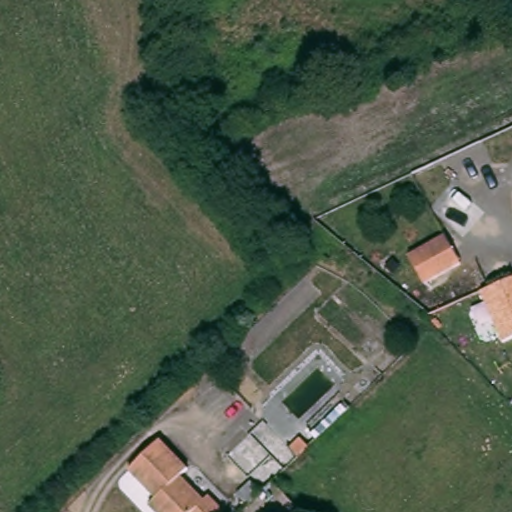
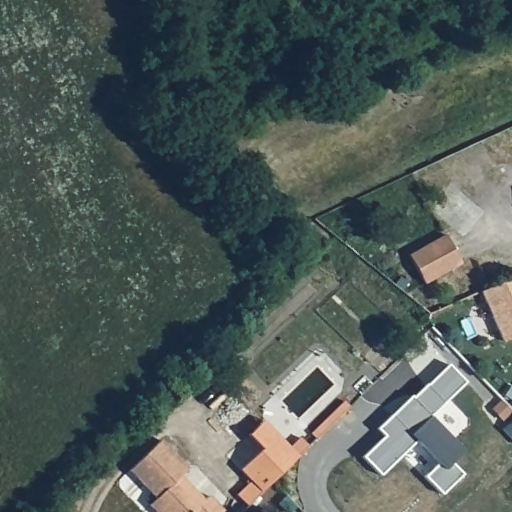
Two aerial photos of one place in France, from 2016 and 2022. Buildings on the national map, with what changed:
unchanged [(424,283),(409,255),(446,234),(461,263),(424,283)]
unchanged [(512,279),(512,338),(502,342),(481,292),(512,279)]
new [(441,492),(425,478),(439,462),(415,438),(379,474),(363,458),(385,437),(377,429),(411,397),(413,398),(449,365),(464,382),(429,416),(463,449),(450,463),(460,473),(441,492)]
unchanged [(298,458),(289,449),(300,437),(309,447),(298,458)]
unchanged [(220,512),(151,512),(149,510),(156,503),(129,474),(160,444),(188,474),(181,481),(204,505),(209,501),(220,512)]
unchanged [(248,506),(236,494),(251,481),(262,492),(248,506)]

